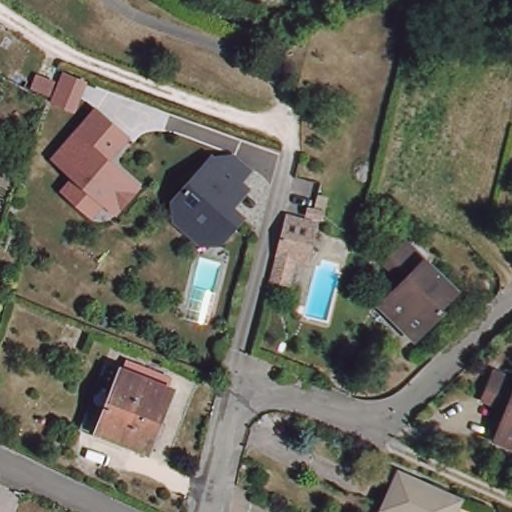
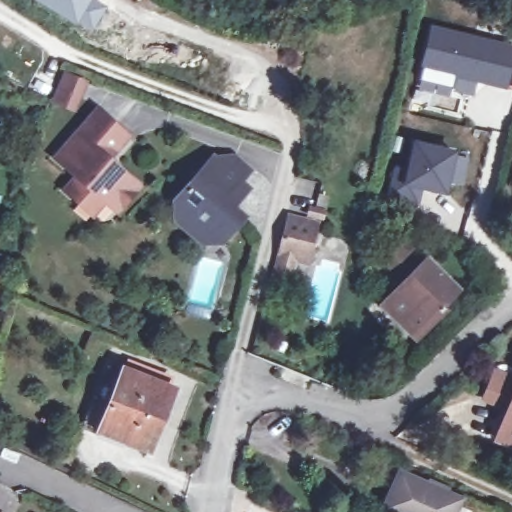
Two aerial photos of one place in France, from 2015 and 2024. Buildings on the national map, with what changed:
new [(90,32),(36,0),(100,0),(107,6),(90,32)]
new [(456,75),(453,89),(420,81),(433,29),(512,47),(503,86),(488,82),(479,80),(456,75)]
unchanged [(78,80),(68,105),(52,99),(63,75),(78,80)]
unchanged [(62,185),(75,171),(53,154),(75,128),(94,105),(109,118),(125,132),(106,155),(116,163),(137,181),(115,206),(102,196),(91,210),(77,198),(62,185)]
new [(453,152),(445,191),(420,186),(417,201),(387,195),(394,168),(408,171),(415,143),(453,152)]
unchanged [(168,219),(167,202),(207,157),(228,155),(245,170),(235,181),(241,187),(225,206),(235,215),(215,239),(193,240),(168,219)]
unchanged [(271,277),(276,255),(286,215),(311,220),(303,253),(302,255),(301,256),(300,257),(296,259),(292,260),(290,281),(271,277)]
unchanged [(461,290),(445,306),(448,310),(420,338),(385,304),(408,281),(390,262),(411,241),(461,290)]
unchanged [(95,420),(117,365),(165,384),(141,443),(116,433),(93,424),(95,420)]
unchanged [(512,373),(512,440),(495,433),(507,403),(483,394),(495,366),(512,373)]
unchanged [(458,498),(453,512),(392,512),(383,508),(399,471),(458,498)]
unchanged [(0,510),(3,512),(0,512),(0,510)]

